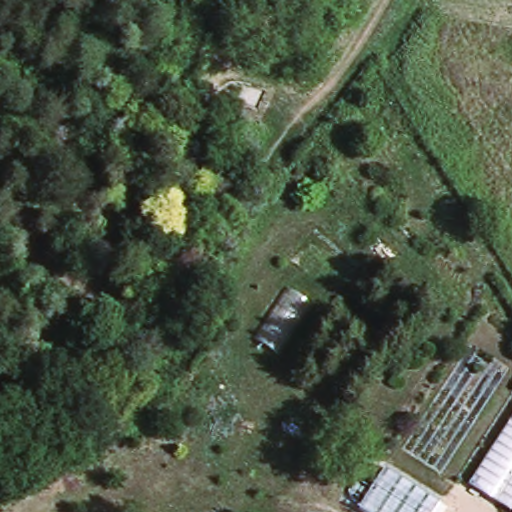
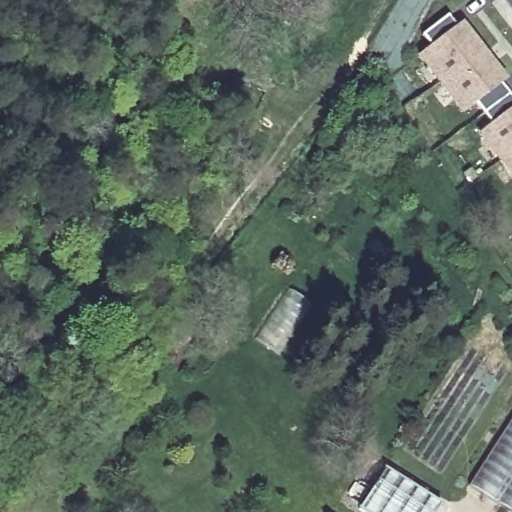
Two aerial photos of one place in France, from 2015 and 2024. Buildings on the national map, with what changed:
new [(433,42),(424,30),(449,10),(459,23),(464,19),(484,47),(442,79),(421,51),(433,42)]
new [(484,47),(506,75),(501,78),(509,90),(477,115),(468,103),(463,107),(442,79),(484,47)]
new [(512,93),(512,151),(502,158),(481,130),(486,126),(477,115),(509,90),(512,93)]
new [(512,172),(502,158),(512,151),(512,172)]
unchanged [(512,512),(510,512),(472,486),(512,424),(512,512)]
new [(444,503),(439,512),(368,512),(364,509),(390,468),(444,503)]

